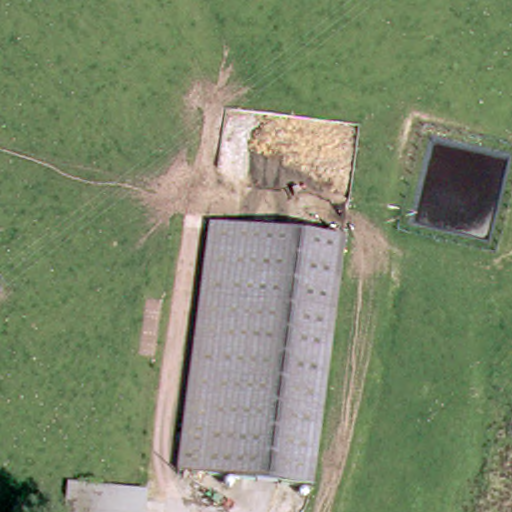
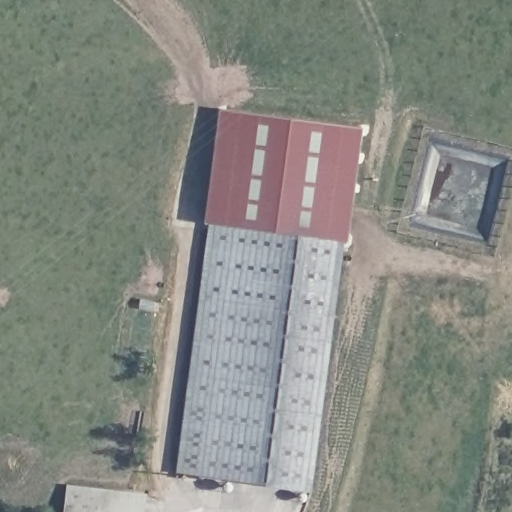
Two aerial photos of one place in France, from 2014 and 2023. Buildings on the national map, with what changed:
new [(204,223),(220,108),(363,126),(347,244),(345,243),(214,225),(208,224),(204,223)]
unchanged [(345,243),(345,247),(314,495),(177,476),(207,232),(208,224),(214,225),(345,243)]
unchanged [(67,488),(141,496),(139,512),(64,512),(67,488)]

